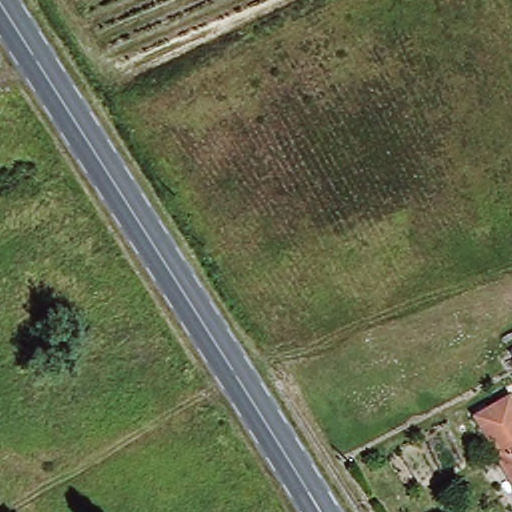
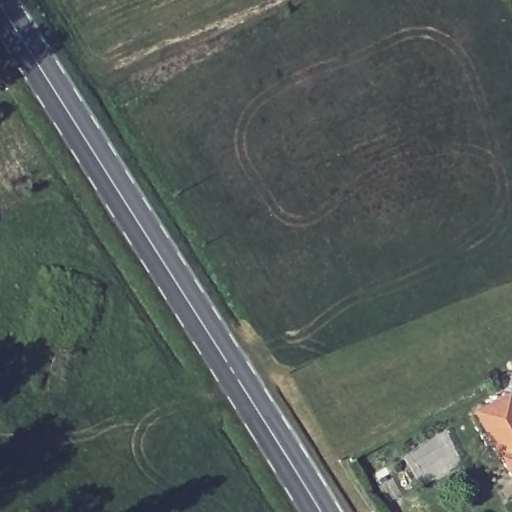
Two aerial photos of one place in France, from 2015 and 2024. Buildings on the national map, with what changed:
unchanged [(512,397),(512,476),(506,467),(497,451),(476,417),(511,396),(512,397)]

